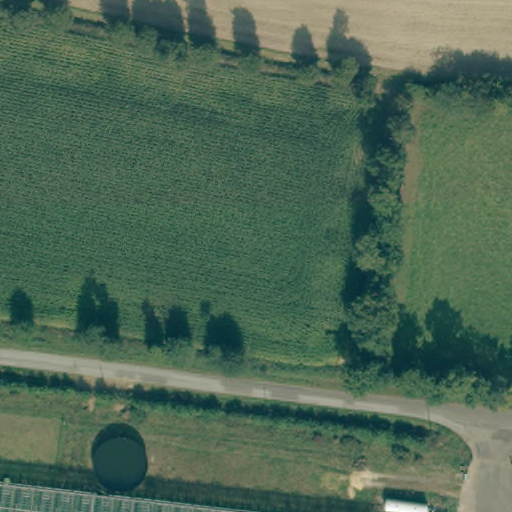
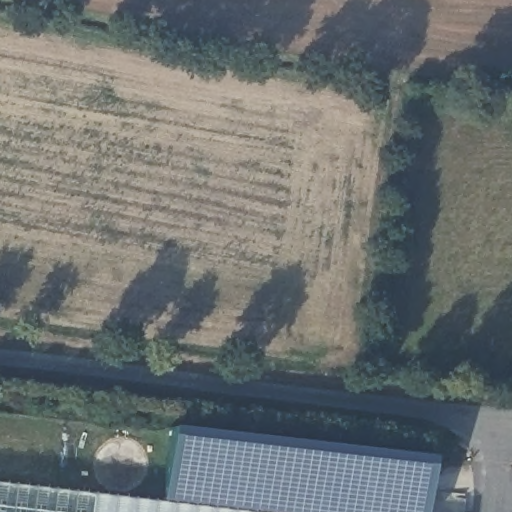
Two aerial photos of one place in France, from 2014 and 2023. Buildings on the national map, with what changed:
new [(435,455),(428,512),(305,512),(165,496),(174,425),(435,455)]
unchanged [(208,512),(0,512),(0,489),(208,512)]

